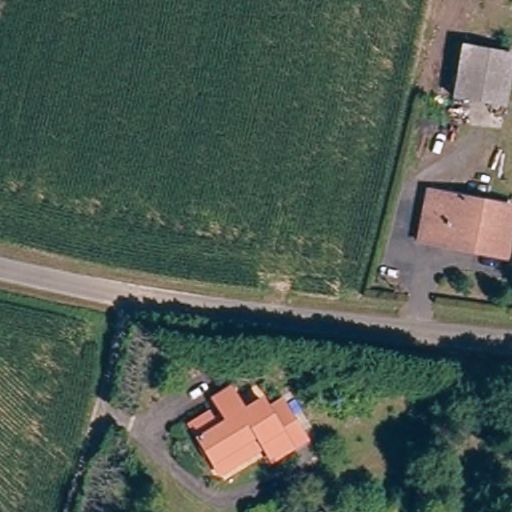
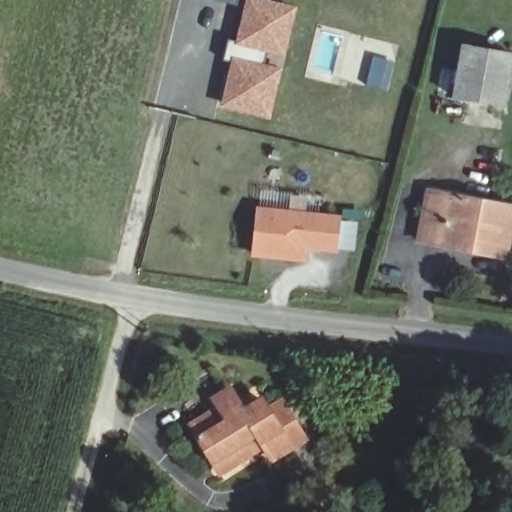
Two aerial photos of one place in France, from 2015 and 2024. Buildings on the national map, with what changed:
new [(286,56),(266,52),(264,64),(282,67),(271,119),(221,106),(232,61),(225,59),(230,39),(237,41),(245,5),(223,0),(270,0),(298,6),(286,56)]
unchanged [(458,51),(509,55),(506,81),(505,101),(455,96),(456,75),(458,51)]
unchanged [(470,250),(434,247),(437,197),(507,202),(504,239),(503,253),(470,250)]
new [(250,258),(255,206),(341,215),(341,222),(358,223),(355,252),(338,251),(338,255),(309,251),(307,263),(250,258)]
unchanged [(192,435),(204,427),(215,441),(226,433),(217,420),(210,410),(230,395),(239,405),(240,408),(261,394),(270,404),(273,409),(285,400),(307,430),(295,439),(275,454),(269,448),(224,479),(218,471),(192,435)]
unchanged [(372,505),(372,512),(356,512),(356,503),(372,505)]
unchanged [(483,511),(490,512),(483,512),(483,511)]

